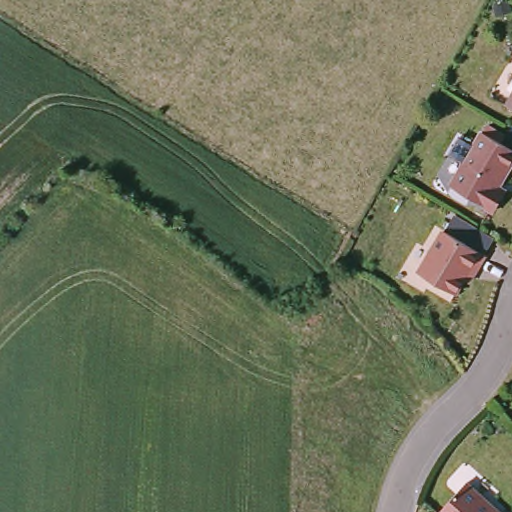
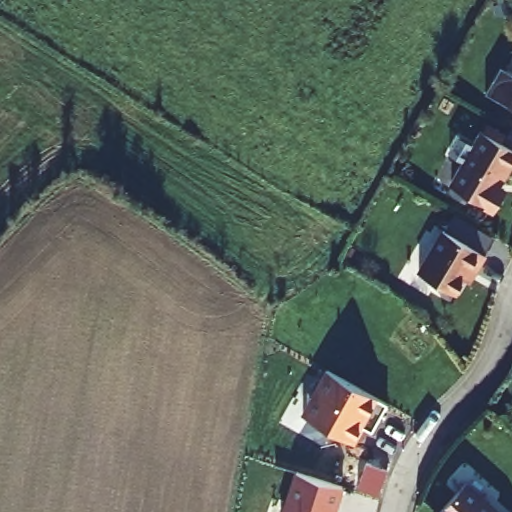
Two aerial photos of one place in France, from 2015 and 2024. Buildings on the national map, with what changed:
new [(483,89),(498,62),(512,70),(512,88),(505,101),(483,89)]
unchanged [(512,93),(512,110),(505,106),(512,93)]
unchanged [(512,154),(496,182),(501,185),(490,206),(450,182),(481,129),(512,147),(512,154)]
unchanged [(484,252),(475,270),(468,266),(454,292),(416,270),(441,227),(484,252)]
new [(386,403),(372,431),(365,426),(355,443),(301,413),(325,368),(386,403)]
new [(281,512),(295,470),(346,486),(337,512),(281,512)]
unchanged [(498,512),(437,512),(465,482),(498,512)]

